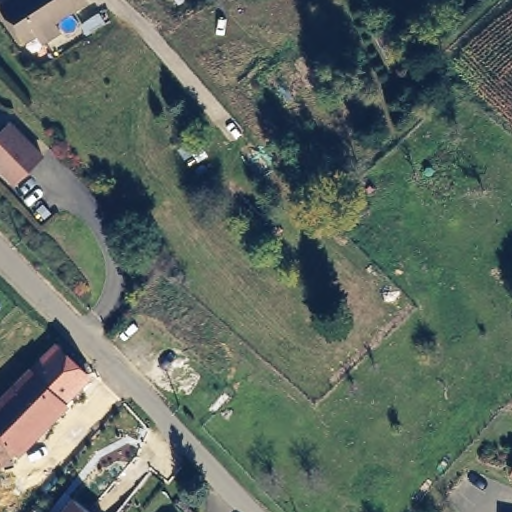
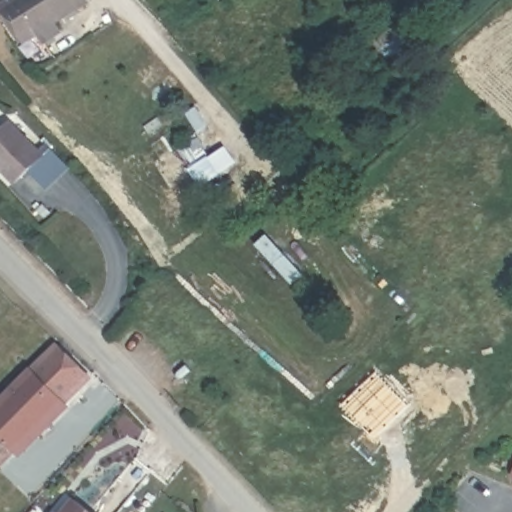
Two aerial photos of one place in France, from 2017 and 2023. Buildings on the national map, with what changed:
unchanged [(12,0),(84,0),(50,25),(55,34),(40,44),(35,35),(22,44),(0,10),(0,8),(12,0)]
unchanged [(38,157),(12,184),(0,172),(0,131),(6,125),(38,157)]
unchanged [(53,345),(85,375),(0,460),(0,399),(53,345)]
unchanged [(94,512),(64,512),(76,497),(94,512)]
unchanged [(56,512),(57,510),(60,512),(56,512)]

